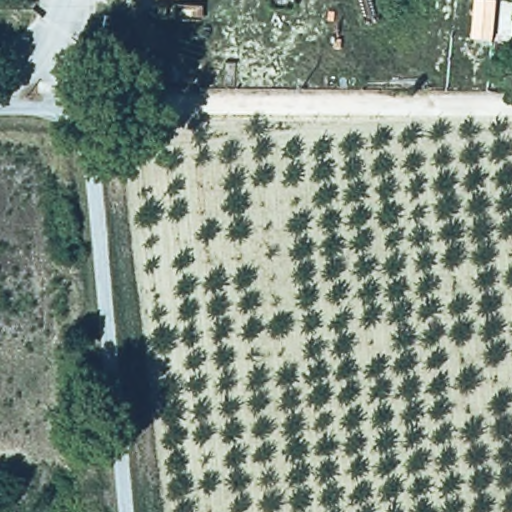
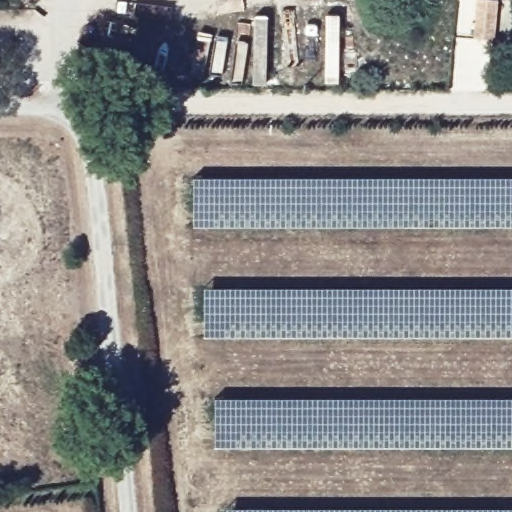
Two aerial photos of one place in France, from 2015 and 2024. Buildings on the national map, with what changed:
new [(192,227),(192,177),(512,178),(512,227),(192,227)]
new [(203,336),(203,287),(512,287),(512,336),(203,336)]
new [(215,447),(214,397),(512,398),(512,447),(215,447)]
new [(225,508),(512,508),(512,512),(226,512),(225,508)]

